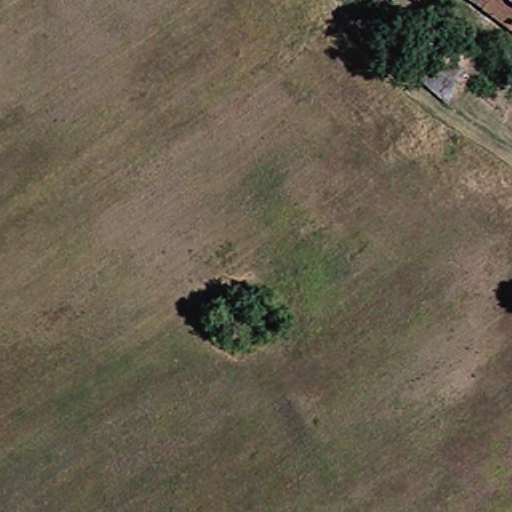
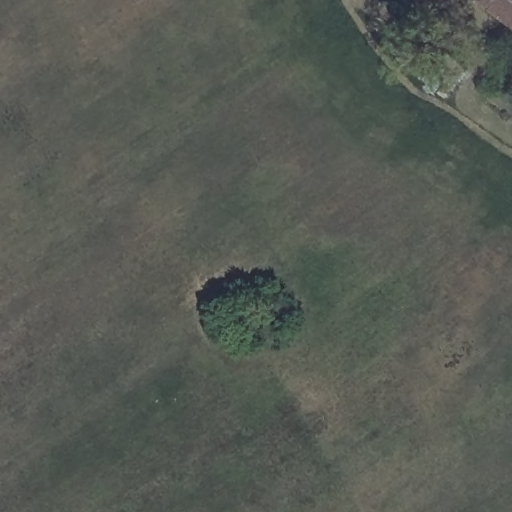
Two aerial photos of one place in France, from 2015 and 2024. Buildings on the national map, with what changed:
unchanged [(480,0),(512,0),(512,40),(471,11),(480,0)]

